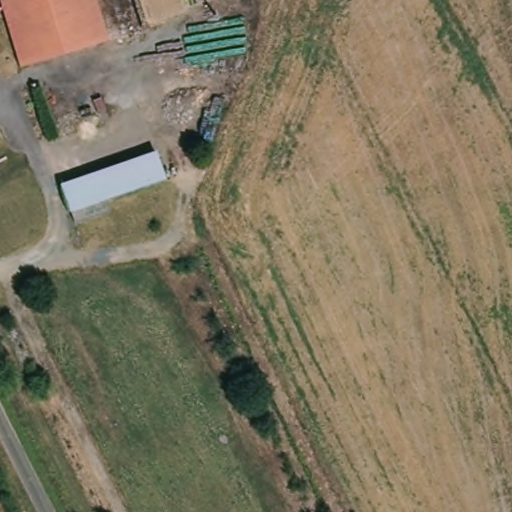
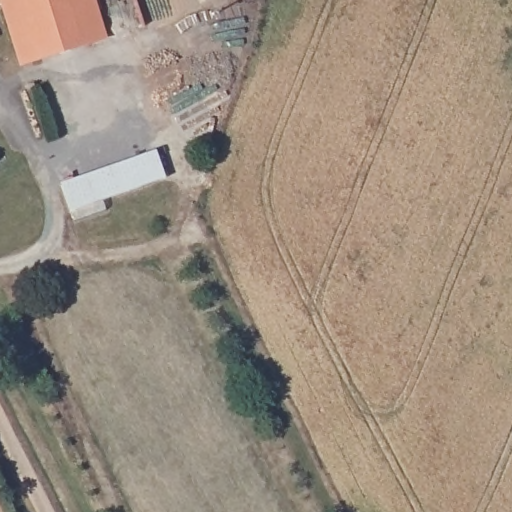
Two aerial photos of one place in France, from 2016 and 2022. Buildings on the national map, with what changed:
unchanged [(2,0),(4,5),(0,8),(0,0),(2,0)]
unchanged [(20,64),(4,5),(2,0),(98,0),(109,35),(20,64)]
unchanged [(139,159),(162,151),(170,176),(147,184),(73,207),(65,186),(64,183),(139,159)]

